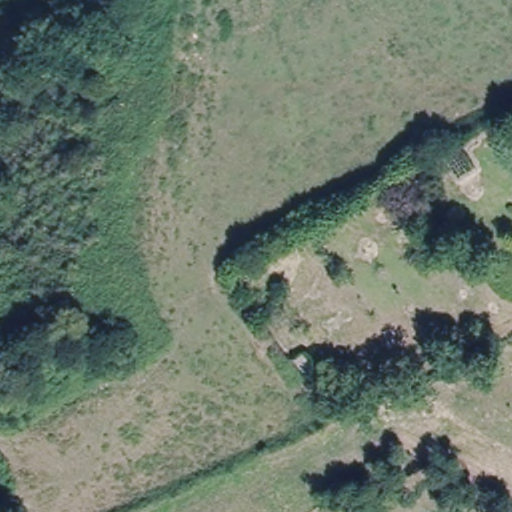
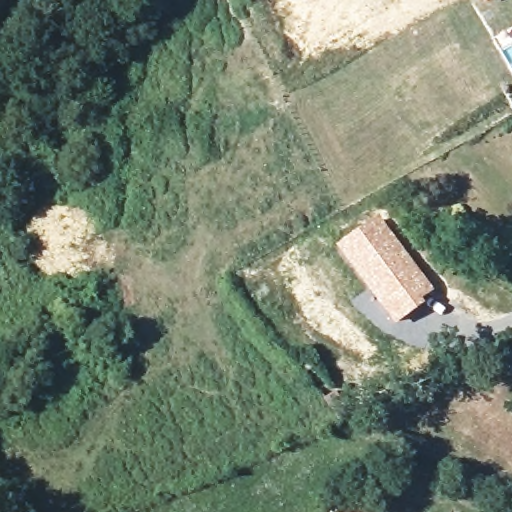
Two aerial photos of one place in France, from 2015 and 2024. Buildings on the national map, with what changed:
new [(483,4),(480,0),(489,0),(483,4)]
new [(378,214),(435,290),(423,300),(425,302),(394,326),(334,246),(378,214)]
unchanged [(345,410),(334,403),(327,393),(343,376),(359,392),(345,410)]
new [(368,512),(343,512),(356,501),(368,512)]

